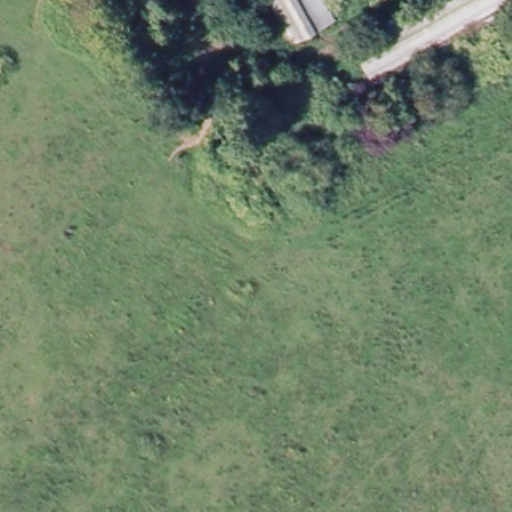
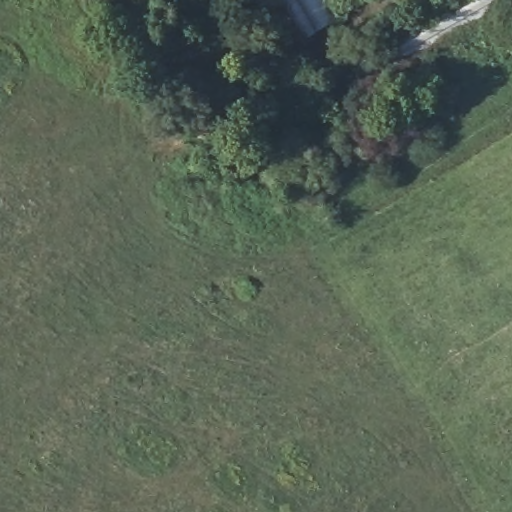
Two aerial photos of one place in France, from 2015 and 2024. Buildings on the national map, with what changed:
unchanged [(255,0),(325,0),(339,24),(285,54),(255,0)]
unchanged [(348,44),(425,0),(512,0),(512,23),(377,99),(348,44)]

